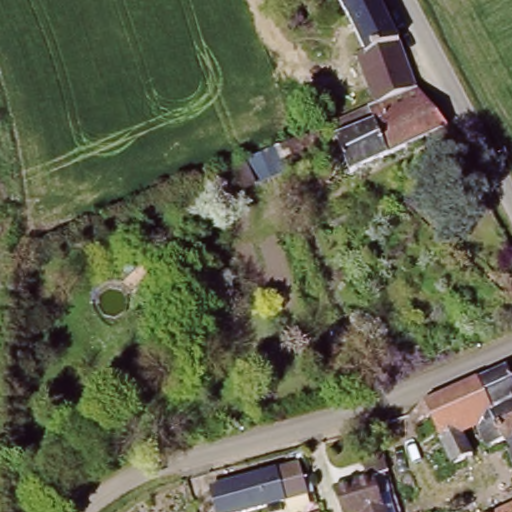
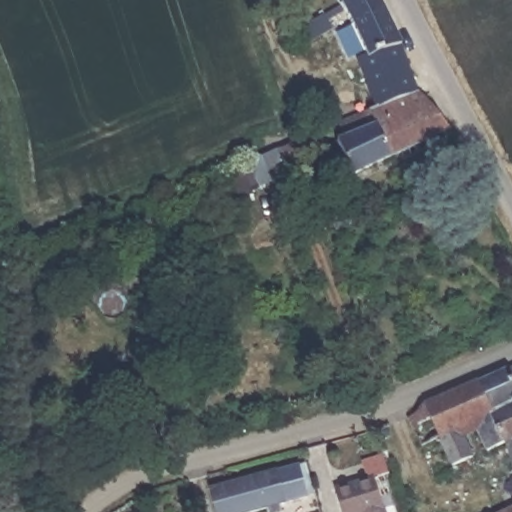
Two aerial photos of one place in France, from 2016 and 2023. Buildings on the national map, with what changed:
unchanged [(404,63),(419,97),(380,112),(359,65),(367,61),(348,18),(338,0),(376,0),(383,13),(404,63)]
unchanged [(447,135),(348,181),(335,151),(339,149),(338,145),(355,138),(357,142),(390,127),(385,118),(378,121),(375,115),(380,112),(419,97),(447,135)]
unchanged [(321,132),(322,150),(300,160),(293,144),(321,132)]
unchanged [(275,149),(287,173),(245,191),(233,168),(275,149)]
unchanged [(408,411),(417,408),(419,401),(425,399),(507,365),(512,364),(512,435),(483,448),(473,424),(460,430),(470,453),(462,457),(468,474),(457,477),(455,474),(440,481),(422,443),(408,411)]
unchanged [(257,512),(228,512),(222,485),(287,469),(297,501),(257,512)]
unchanged [(327,487),(368,474),(380,512),(335,512),(327,487)]
unchanged [(500,509),(512,504),(512,512),(494,512),(500,509)]

